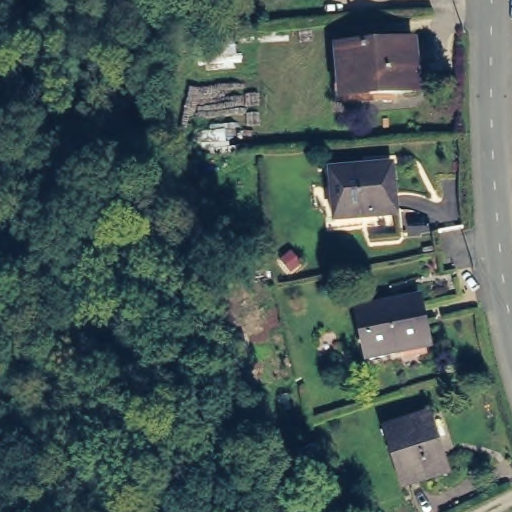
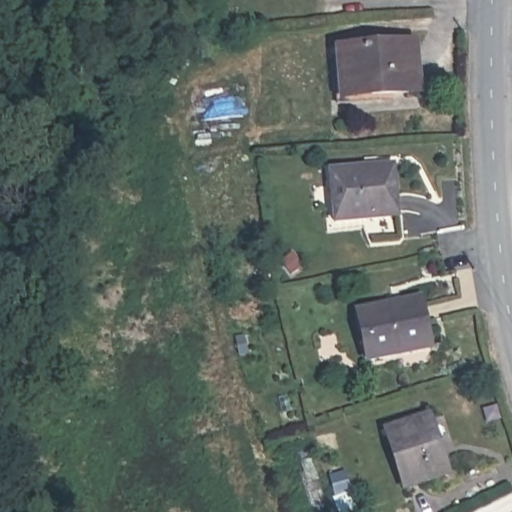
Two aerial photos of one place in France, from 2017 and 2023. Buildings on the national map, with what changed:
unchanged [(414,49),(417,97),(371,100),(371,98),(343,100),(339,55),(414,49)]
unchanged [(398,216),(335,222),(330,171),(393,165),(398,216)]
unchanged [(434,347),(373,361),(363,310),(424,297),(434,347)]
unchanged [(452,474),(410,487),(391,429),(433,415),(452,474)]
unchanged [(344,472),(349,490),(334,495),(329,477),(344,472)]

